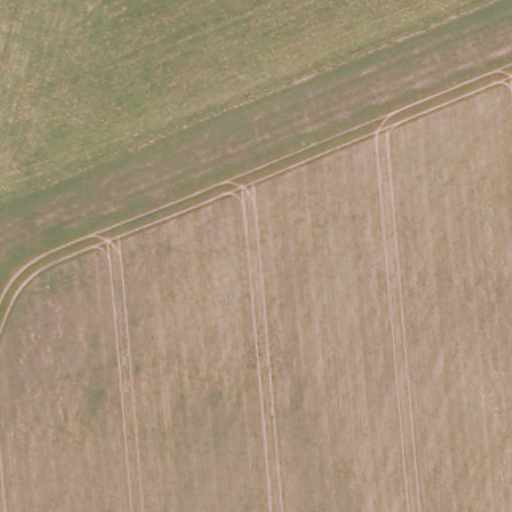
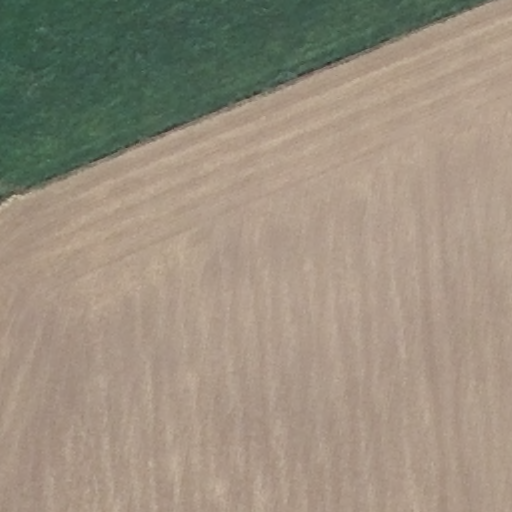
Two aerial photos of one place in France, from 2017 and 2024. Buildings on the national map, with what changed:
[]

